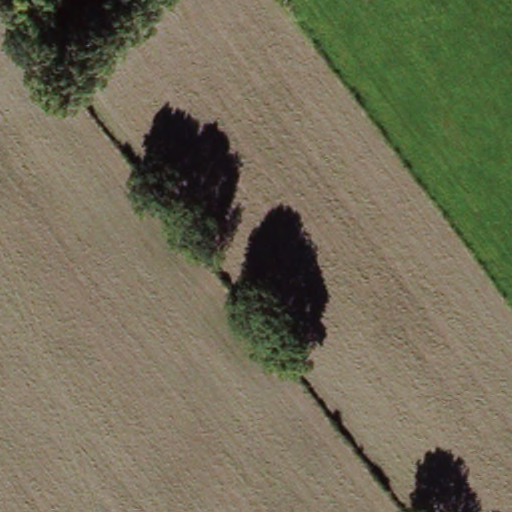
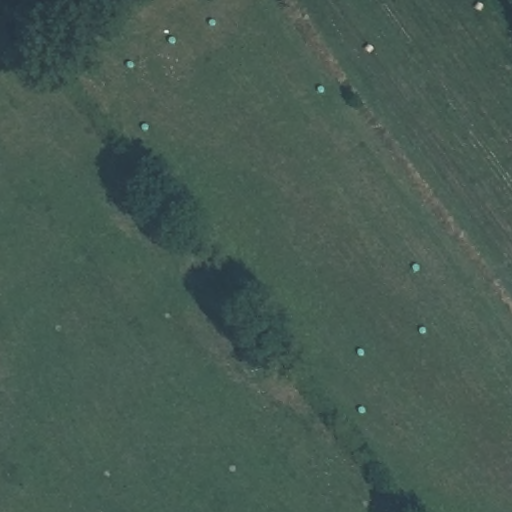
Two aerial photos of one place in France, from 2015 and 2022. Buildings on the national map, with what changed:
[]

